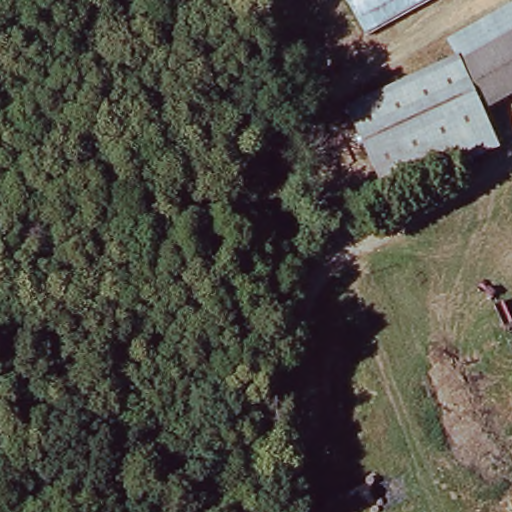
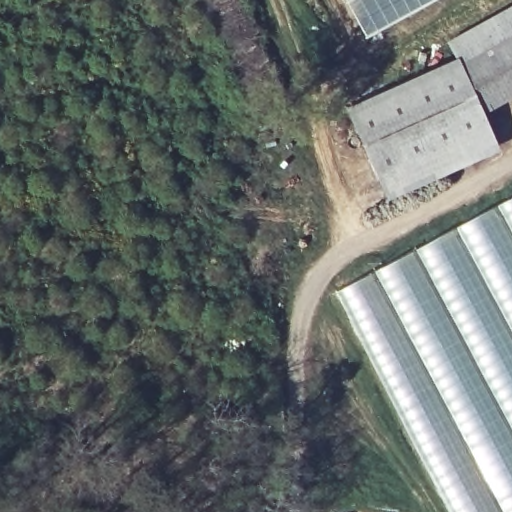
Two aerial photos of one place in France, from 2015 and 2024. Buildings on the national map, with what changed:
unchanged [(364,34),(346,0),(427,0),(364,34)]
unchanged [(454,42),(512,10),(512,40),(466,65),(463,58),(454,42)]
unchanged [(512,40),(512,98),(490,110),(466,65),(512,40)]
unchanged [(384,193),(348,100),(463,58),(466,65),(497,151),(384,193)]
new [(451,512),(338,291),(512,198),(512,512),(451,512)]

